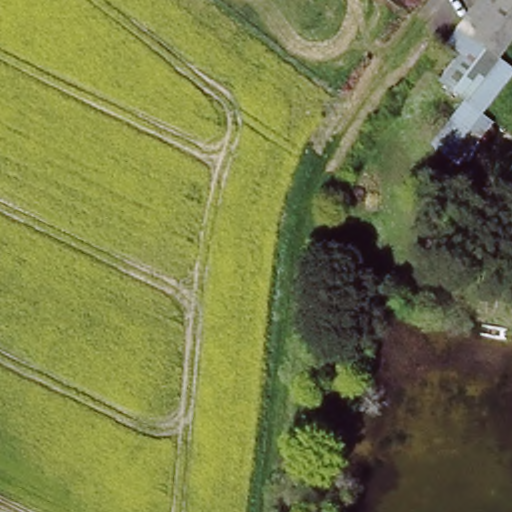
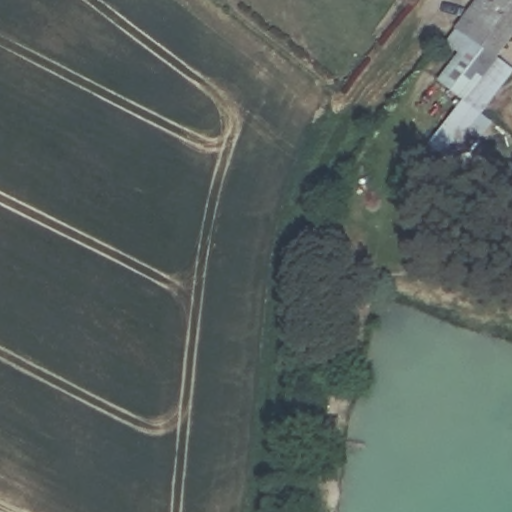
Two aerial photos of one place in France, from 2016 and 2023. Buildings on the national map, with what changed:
unchanged [(498,58),(462,32),(485,0),(512,0),(512,38),(498,58)]
unchanged [(498,58),(512,67),(512,76),(487,114),(483,110),(444,82),(465,52),(453,44),(462,32),(498,58)]

